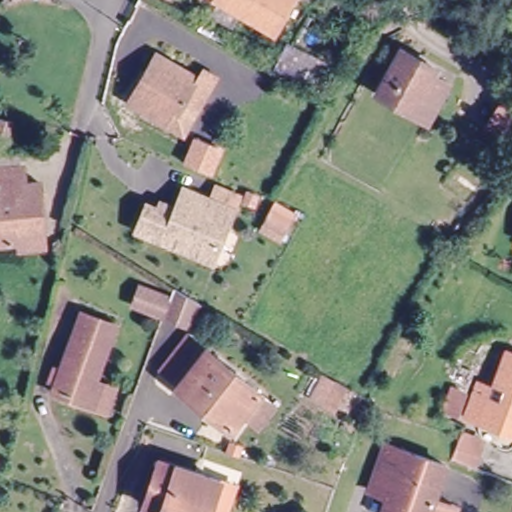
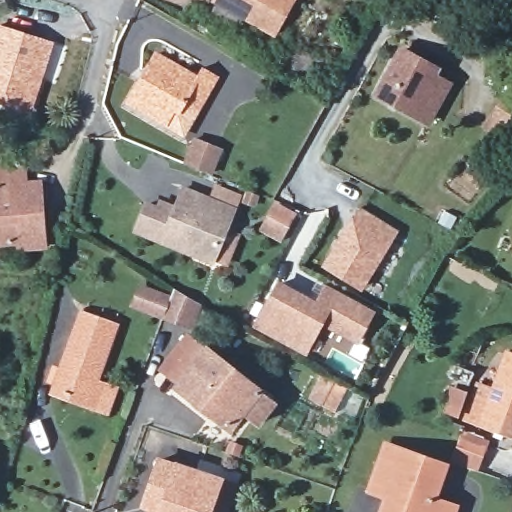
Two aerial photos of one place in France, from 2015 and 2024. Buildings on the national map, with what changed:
unchanged [(276,33),(215,1),(216,0),(293,0),(276,33)]
new [(55,41),(30,115),(0,105),(0,23),(55,41)]
unchanged [(165,121),(127,101),(152,55),(192,76),(200,63),(215,72),(190,120),(184,131),(165,121)]
unchanged [(433,79),(430,84),(445,92),(430,116),(416,109),(407,123),(372,103),(398,60),(433,79)]
unchanged [(502,97),(512,103),(512,130),(490,117),(502,97)]
unchanged [(234,160),(227,175),(198,164),(205,147),(223,154),(222,155),(234,160)]
unchanged [(22,255),(22,249),(0,250),(0,177),(25,176),(26,192),(42,191),(46,254),(22,255)]
new [(146,200),(157,205),(159,199),(176,205),(183,184),(211,195),(215,185),(242,195),(230,229),(240,234),(228,265),(215,259),(213,265),(133,234),(146,200)]
demolished [(154,209),(164,214),(172,195),(200,206),(198,210),(212,216),(206,231),(219,236),(208,262),(192,270),(173,262),(170,254),(127,236),(137,211),(150,217),(154,209)]
new [(357,206),(399,230),(363,291),(321,267),(357,206)]
new [(315,300),(323,283),(375,311),(358,346),(321,326),(306,356),(251,327),(278,279),(315,300)]
unchanged [(200,300),(191,325),(165,315),(135,304),(141,286),(171,298),(176,286),(200,300)]
unchanged [(53,393),(56,385),(50,382),(55,369),(61,372),(83,315),(118,329),(97,384),(102,386),(95,410),(88,407),(72,401),(53,393)]
unchanged [(253,420),(242,412),(231,427),(179,388),(180,386),(162,372),(190,339),(269,401),(253,420)]
unchanged [(502,353),(512,357),(512,438),(460,418),(472,385),(487,391),(502,353)]
unchanged [(461,436),(484,445),(474,471),(451,462),(461,436)]
unchanged [(385,440),(444,460),(432,495),(451,501),(448,512),(389,512),(380,509),(389,484),(371,478),(385,440)]
unchanged [(215,482),(204,512),(145,512),(162,465),(215,482)]

